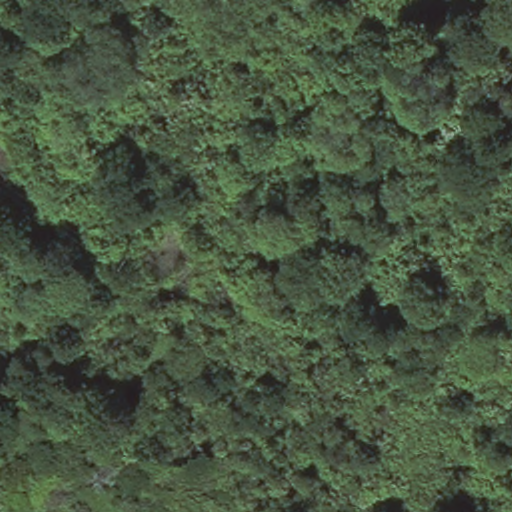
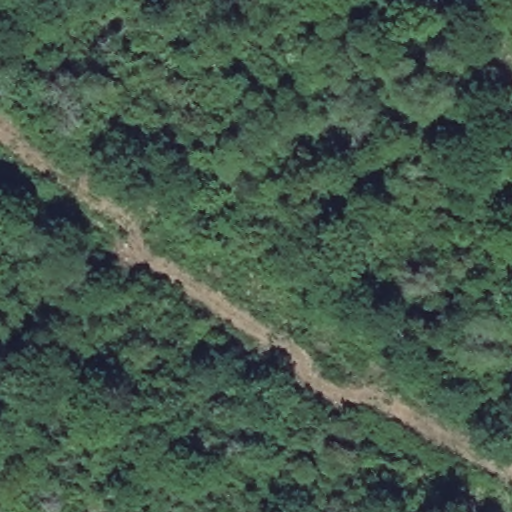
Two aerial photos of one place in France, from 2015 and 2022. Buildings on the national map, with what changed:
unchanged [(12,496),(2,512),(0,512),(0,495),(3,490),(12,496)]

